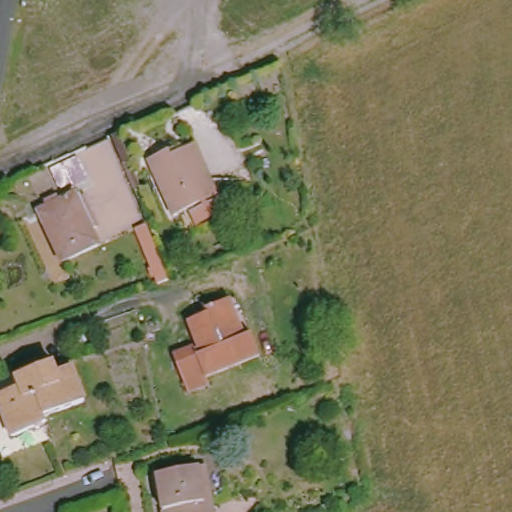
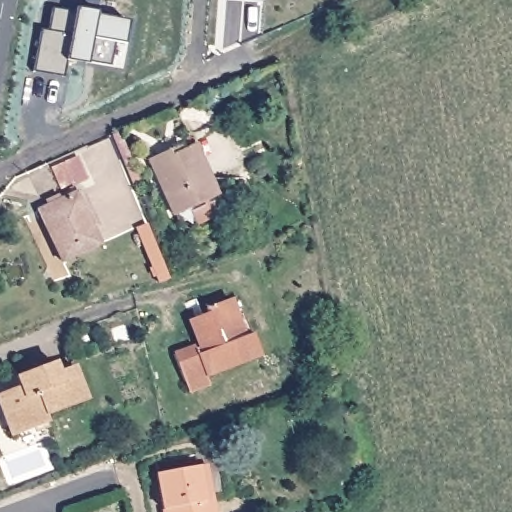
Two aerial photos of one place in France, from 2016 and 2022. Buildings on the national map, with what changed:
new [(123,44),(114,42),(110,65),(87,61),(87,65),(67,61),(64,76),(36,71),(42,31),(50,33),(54,10),(76,13),(76,9),(97,13),(96,18),(126,23),(123,44)]
unchanged [(198,134),(209,159),(192,166),(205,198),(212,213),(185,225),(178,210),(168,214),(144,159),(198,134)]
unchanged [(74,193),(97,243),(61,260),(37,211),(74,193)]
unchanged [(196,358),(205,354),(192,324),(209,317),(206,312),(227,303),(243,339),(252,335),(261,357),(206,381),(210,389),(191,397),(175,360),(193,352),(196,358)]
unchanged [(14,375),(50,361),(54,369),(69,363),(82,398),(41,416),(45,423),(10,436),(0,410),(0,392),(19,384),(14,375)]
unchanged [(150,476),(190,462),(199,459),(211,495),(216,512),(162,512),(150,476)]

